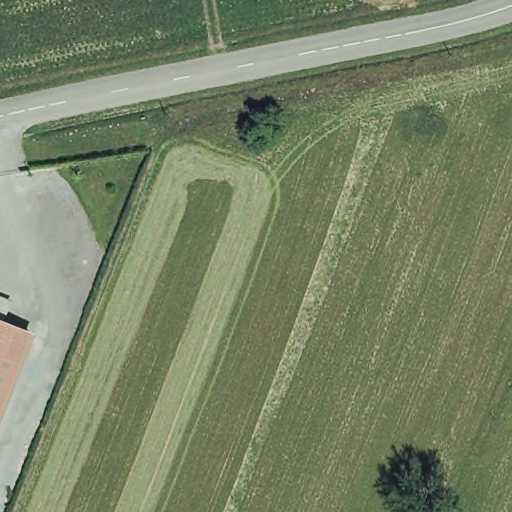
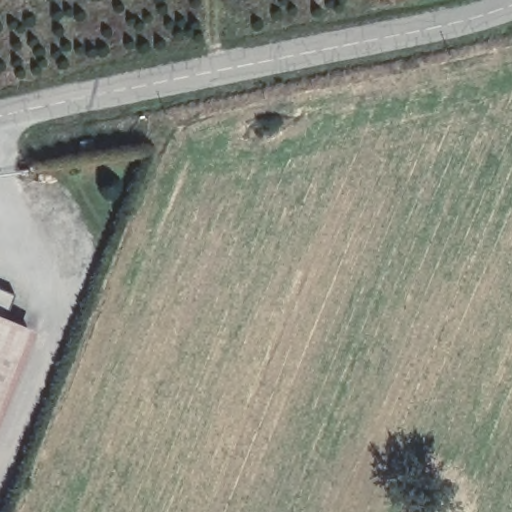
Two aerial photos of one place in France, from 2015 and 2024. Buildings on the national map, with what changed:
unchanged [(32,332),(0,415),(0,319),(32,332)]

